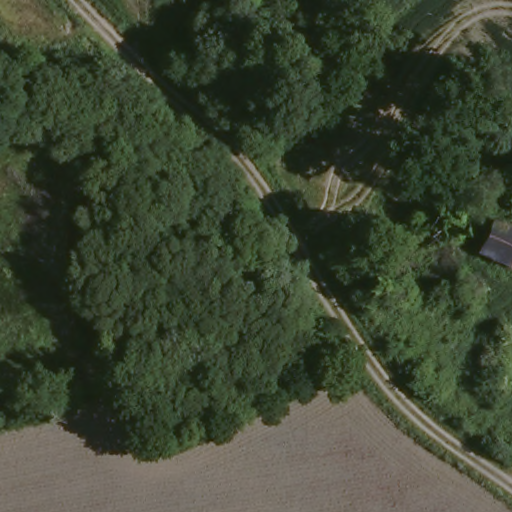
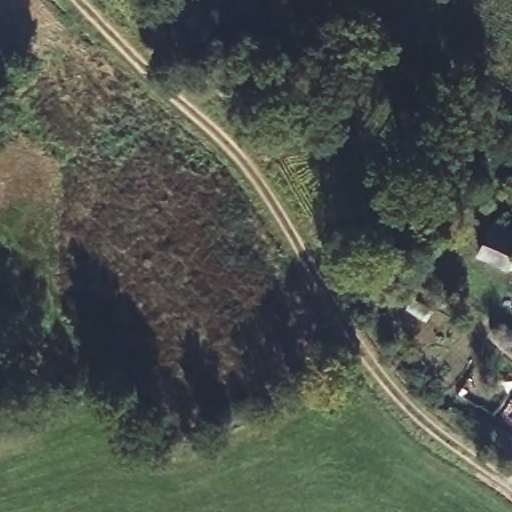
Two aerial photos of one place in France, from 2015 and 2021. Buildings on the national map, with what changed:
unchanged [(242,72),(242,93),(208,92),(209,71),(242,72)]
unchanged [(497,219),(512,226),(512,267),(483,253),(497,219)]
unchanged [(512,333),(512,352),(505,347),(493,341),(501,327),(512,333)]

